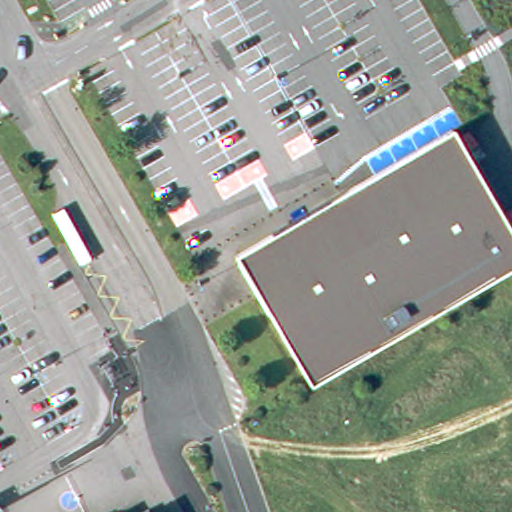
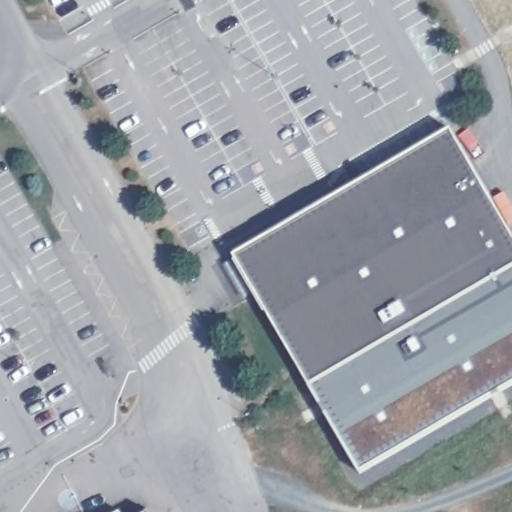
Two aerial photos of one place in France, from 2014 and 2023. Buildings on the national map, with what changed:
unchanged [(452,127),(512,234),(512,266),(305,383),(230,252),(452,127)]
new [(360,471),(309,382),(512,266),(512,383),(360,471)]
unchanged [(142,504),(147,512),(130,512),(142,504)]
unchanged [(114,509),(116,512),(109,512),(114,509)]

